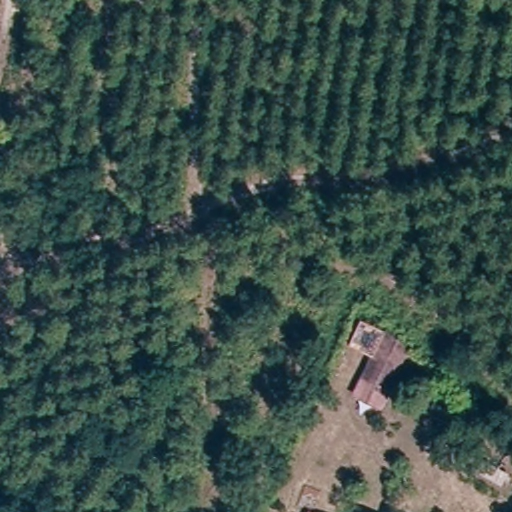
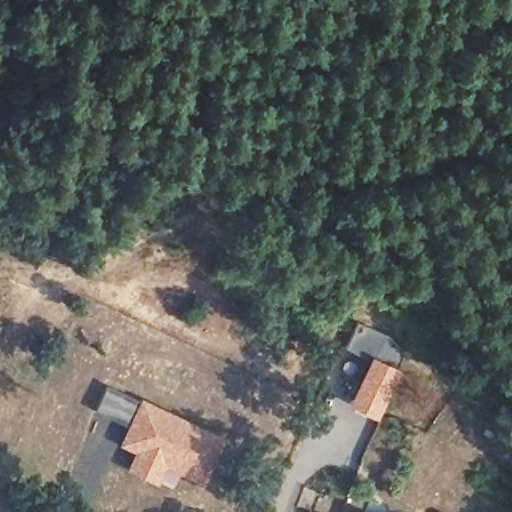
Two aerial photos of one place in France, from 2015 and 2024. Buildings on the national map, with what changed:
unchanged [(358,402),(365,387),(377,362),(388,336),(407,352),(388,398),(380,412),(358,402)]
new [(166,467),(159,484),(126,469),(135,452),(120,445),(129,425),(97,410),(108,387),(140,402),(142,398),(226,438),(204,486),(166,467)]
unchanged [(314,512),(308,512),(309,510),(314,512)]

